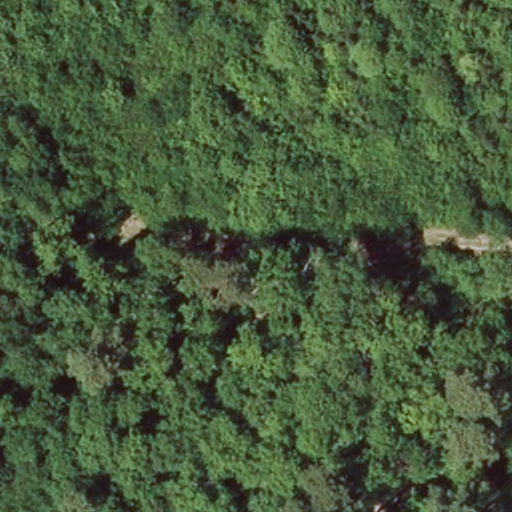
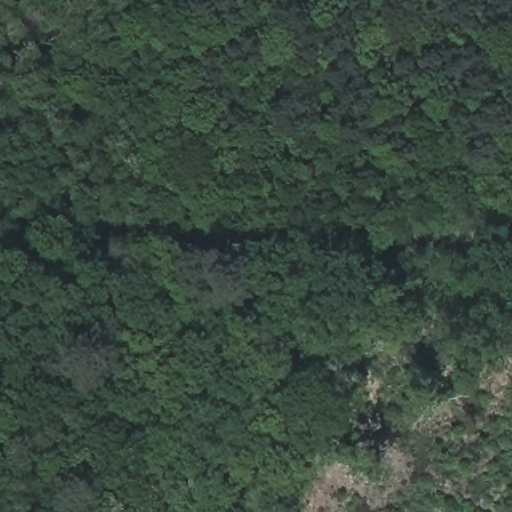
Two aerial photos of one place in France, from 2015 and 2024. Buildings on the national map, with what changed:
unchanged [(213,512),(177,512),(195,489),(217,507),(213,512)]

